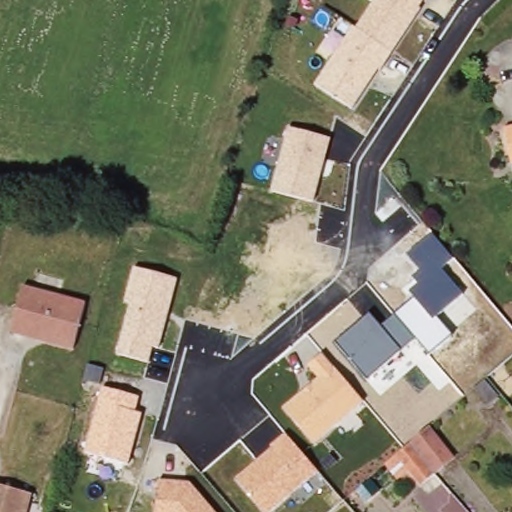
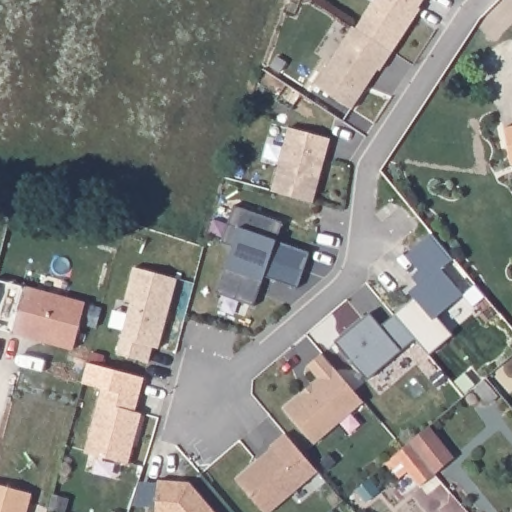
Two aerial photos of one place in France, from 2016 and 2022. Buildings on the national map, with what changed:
unchanged [(315,85),(373,0),(425,0),(351,109),(315,85)]
unchanged [(508,127),(512,127),(512,148),(508,127)]
unchanged [(288,129),(331,140),(315,202),(271,191),(288,129)]
new [(218,245),(229,207),(279,220),(274,240),(308,249),(303,268),(298,285),(264,276),(256,306),(217,296),(230,249),(218,245)]
unchanged [(334,343),(369,313),(381,326),(412,300),(404,290),(414,280),(411,278),(419,271),(406,255),(432,233),(454,258),(443,270),(464,293),(437,317),(451,336),(430,355),(417,341),(366,380),(334,343)]
unchanged [(117,353),(130,303),(124,302),(133,267),(178,280),(159,349),(153,347),(149,363),(117,353)]
unchanged [(47,292),(85,303),(72,349),(35,338),(9,331),(22,285),(47,292)]
unchanged [(282,407),(318,379),(307,366),(324,352),(364,402),(313,445),(282,407)]
unchanged [(497,395),(488,404),(474,388),(484,379),(497,395)]
unchanged [(86,451),(102,387),(139,397),(135,412),(142,415),(128,465),(86,451)]
unchanged [(433,426),(458,458),(439,475),(425,486),(400,455),(414,442),(433,426)]
unchanged [(287,435),(317,472),(266,512),(264,512),(236,478),(287,435)]
unchanged [(192,483),(215,512),(155,512),(156,480),(192,483)]
unchanged [(27,512),(0,512),(0,489),(31,498),(27,512)]
unchanged [(111,512),(112,507),(122,510),(122,512),(111,512)]

